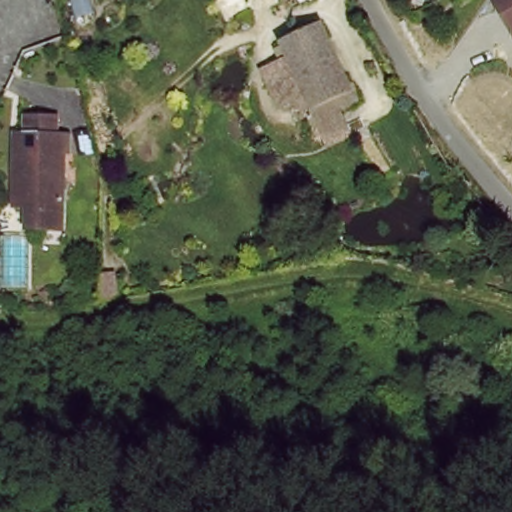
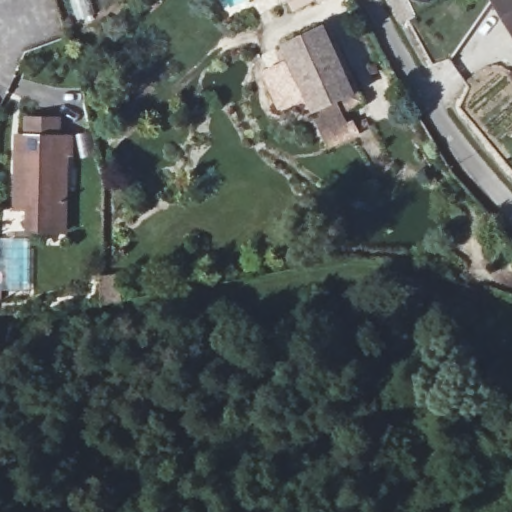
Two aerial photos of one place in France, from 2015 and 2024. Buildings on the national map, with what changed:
unchanged [(286,8),(282,0),(305,0),(286,8)]
unchanged [(501,0),(512,0),(512,30),(494,4),(501,0)]
unchanged [(304,72),(296,54),(288,38),(327,21),(360,89),(320,106),(313,91),(304,72)]
unchanged [(304,72),(313,91),(286,103),(269,66),(296,54),(304,72)]
unchanged [(15,175),(15,133),(25,133),(25,116),(59,116),(58,134),(67,134),(65,230),(27,228),(14,228),(15,175)]

